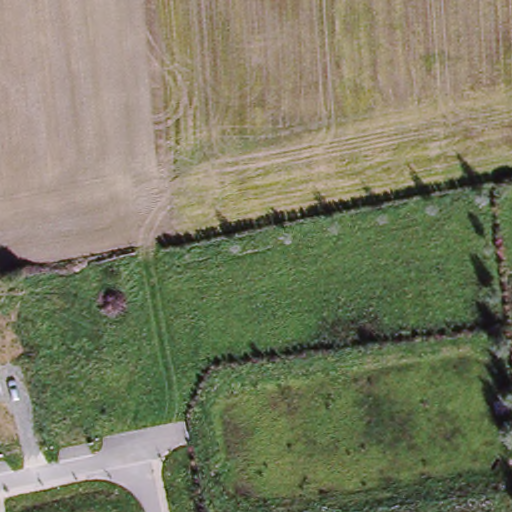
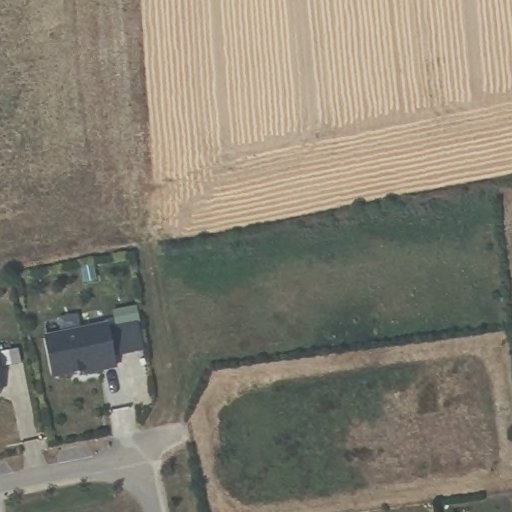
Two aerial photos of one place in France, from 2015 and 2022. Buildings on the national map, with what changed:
new [(106,322),(116,365),(85,371),(84,369),(57,374),(53,371),(45,334),(106,322)]
unchanged [(3,393),(0,394),(0,382),(3,393)]

